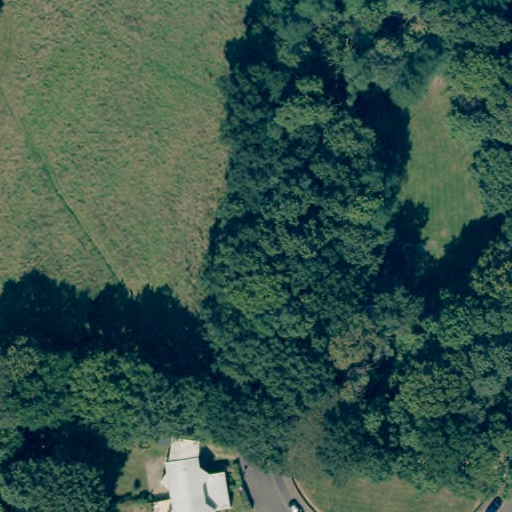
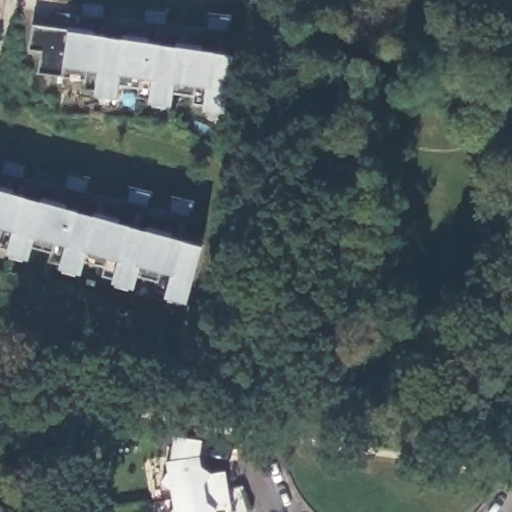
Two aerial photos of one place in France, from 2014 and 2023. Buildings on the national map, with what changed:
new [(226,115),(204,112),(204,107),(194,105),(195,96),(175,94),(172,106),(149,104),(150,98),(140,97),(141,88),(120,84),(118,99),(95,95),(96,91),(86,89),(86,79),(64,76),(39,73),(43,51),(30,49),(33,25),(70,31),(79,32),(83,15),(84,3),(104,4),(103,17),(144,21),(146,9),(167,11),(165,24),(209,29),(210,15),(230,18),(230,29),(226,29),(227,30),(222,54),(235,56),(226,115)]
new [(190,216),(182,240),(204,247),(188,305),(186,312),(159,303),(139,297),(105,288),(110,273),(103,270),(92,267),(88,284),(55,275),(58,263),(57,263),(50,261),(53,253),(39,249),(35,264),(34,269),(2,260),(5,249),(4,249),(0,247),(0,180),(2,173),(6,160),(26,165),(24,177),(65,187),(69,174),(89,179),(86,192),(128,202),(131,189),(151,194),(148,205),(171,212),(174,199),(193,204),(190,216)]
unchanged [(198,438),(195,454),(197,464),(207,471),(221,469),(224,487),(170,496),(167,486),(158,479),(165,469),(163,459),(167,459),(171,434),(198,438)]
unchanged [(227,504),(213,507),(210,512),(166,512),(171,506),(170,496),(224,487),(227,504)]

